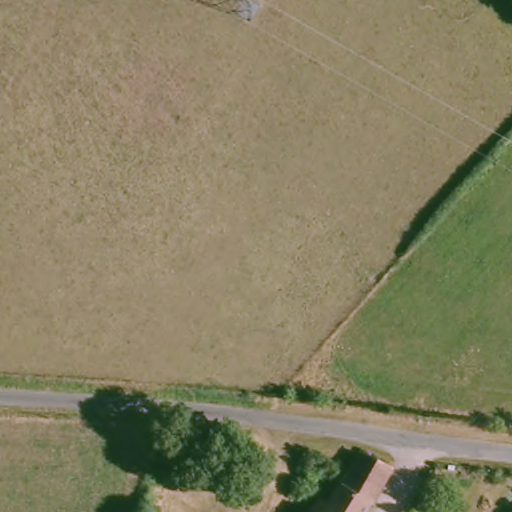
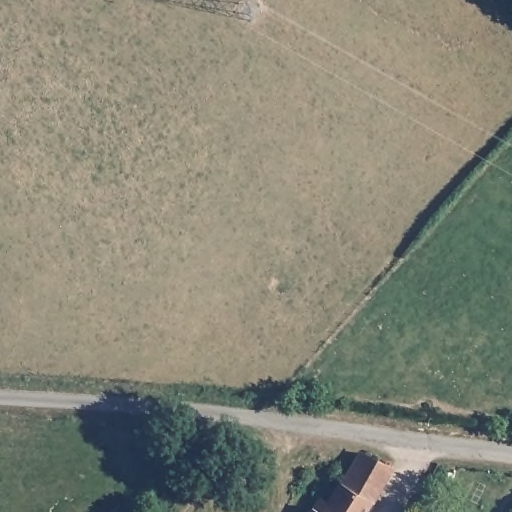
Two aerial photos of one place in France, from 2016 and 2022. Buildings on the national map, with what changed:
unchanged [(345,490),(365,459),(392,475),(372,506),(345,490)]
unchanged [(330,512),(345,490),(372,506),(369,512),(330,512)]

